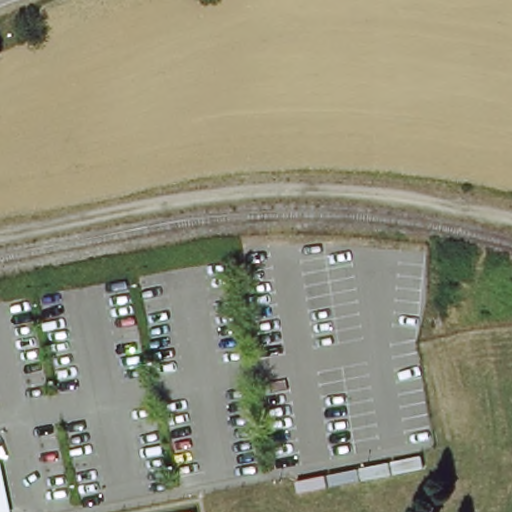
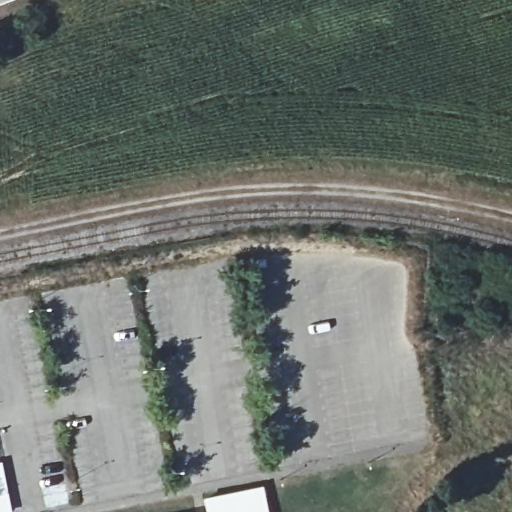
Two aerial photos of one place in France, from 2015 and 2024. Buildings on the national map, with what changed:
unchanged [(9,512),(0,512),(0,481),(3,480),(9,512)]
new [(204,498),(262,485),(268,512),(207,512),(204,498)]

